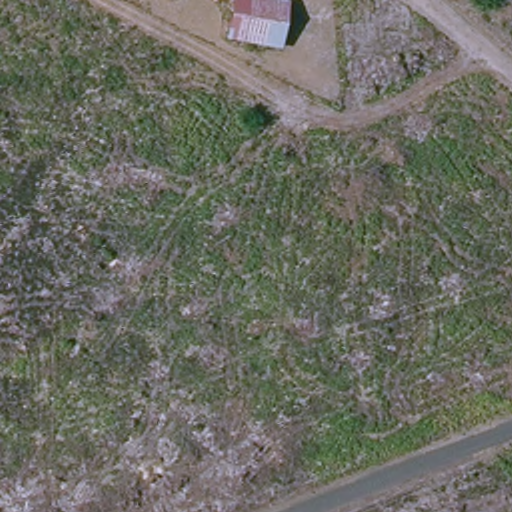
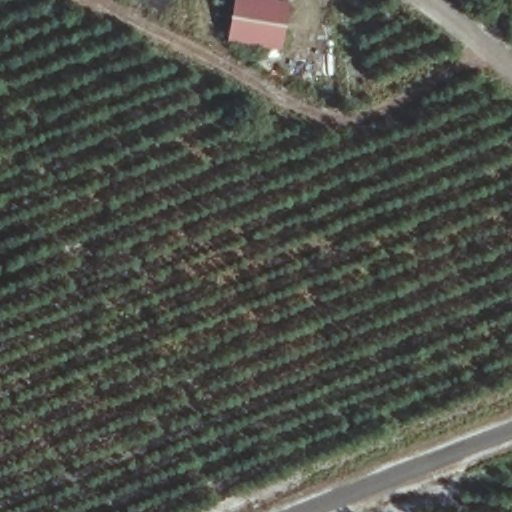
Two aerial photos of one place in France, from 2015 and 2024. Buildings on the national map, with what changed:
unchanged [(280,43),(230,37),(233,0),(278,0),(285,1),(280,43)]

